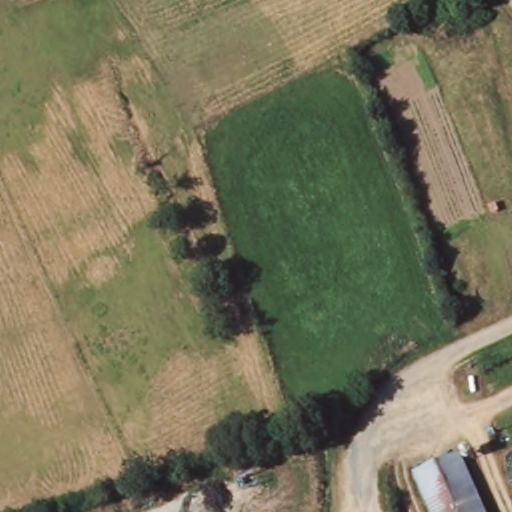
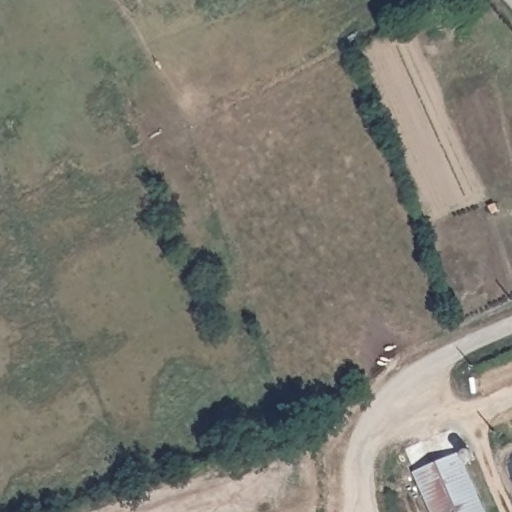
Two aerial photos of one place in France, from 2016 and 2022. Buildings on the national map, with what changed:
unchanged [(453,452),(484,512),(430,512),(410,473),(453,452)]

